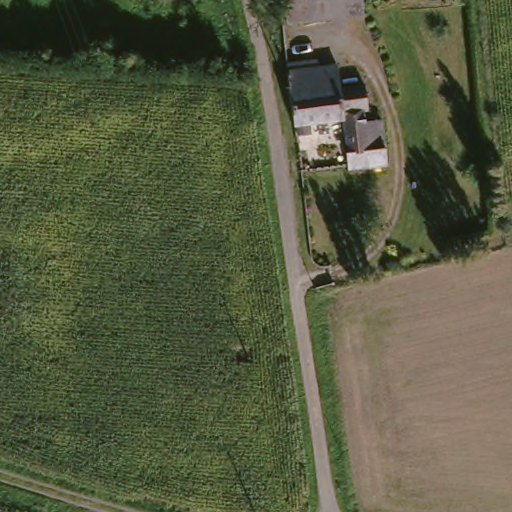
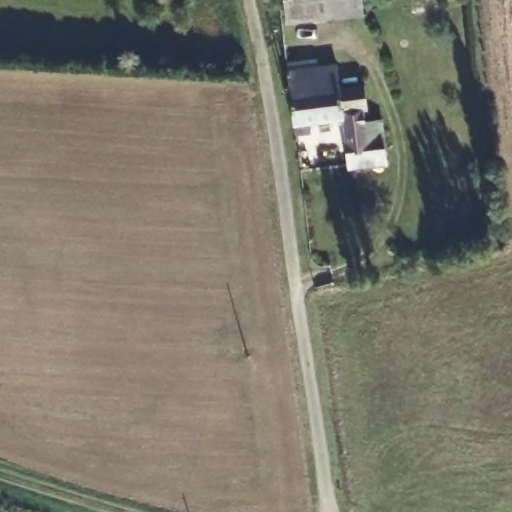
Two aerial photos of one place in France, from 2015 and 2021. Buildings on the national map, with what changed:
unchanged [(360,16),(288,21),(285,0),(358,0),(360,16)]
unchanged [(343,62),(346,83),(370,80),(373,106),(366,107),(367,120),(389,118),(392,160),(377,162),(357,163),(351,116),(301,121),(294,68),(343,62)]

